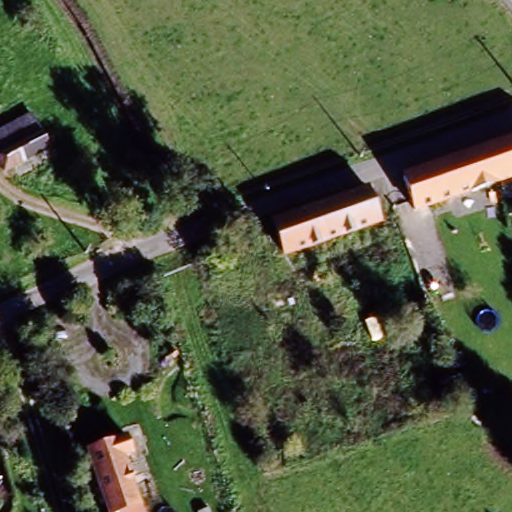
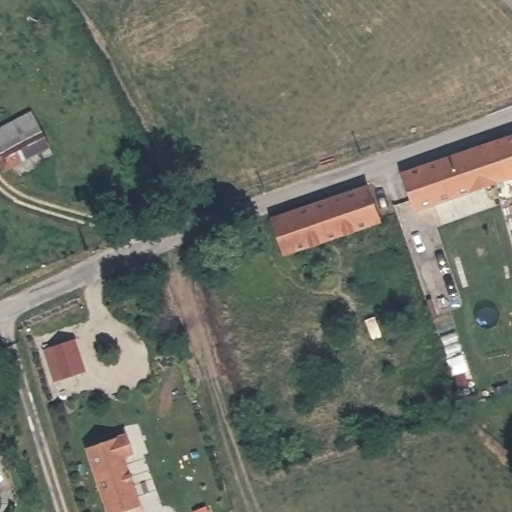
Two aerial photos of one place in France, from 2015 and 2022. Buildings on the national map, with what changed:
unchanged [(0,163),(0,147),(0,127),(35,109),(42,124),(52,143),(3,170),(0,163)]
unchanged [(512,136),(512,173),(420,210),(407,179),(512,136)]
unchanged [(360,191),(372,221),(287,255),(275,224),(360,191)]
new [(74,341),(85,370),(57,380),(46,352),(74,341)]
unchanged [(130,458),(123,462),(142,512),(109,512),(85,449),(122,435),(130,458)]

